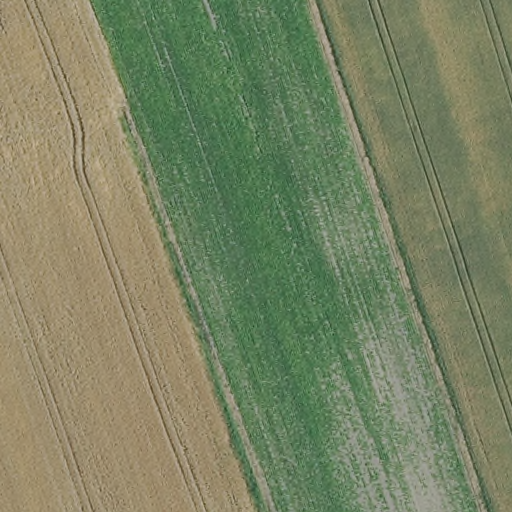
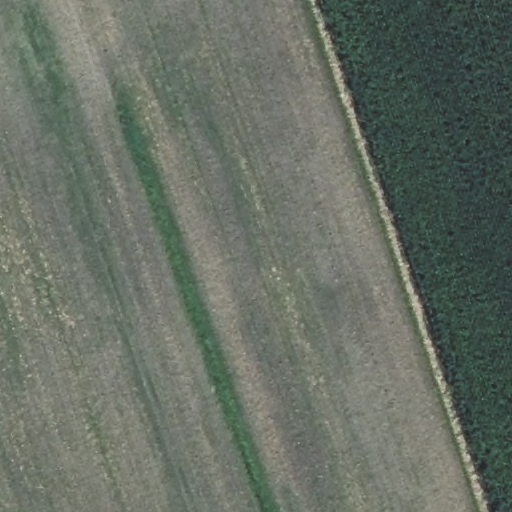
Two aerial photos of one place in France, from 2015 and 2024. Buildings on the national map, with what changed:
[]

